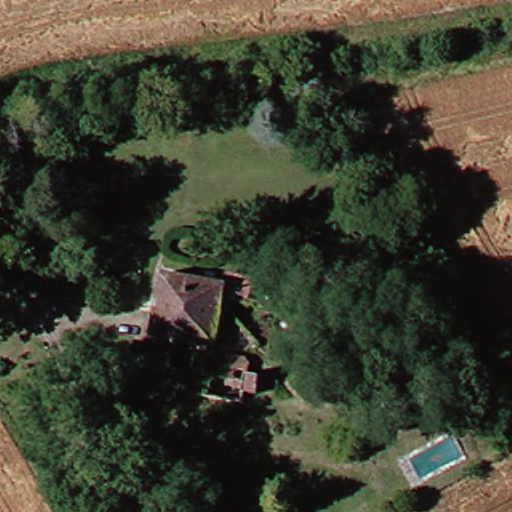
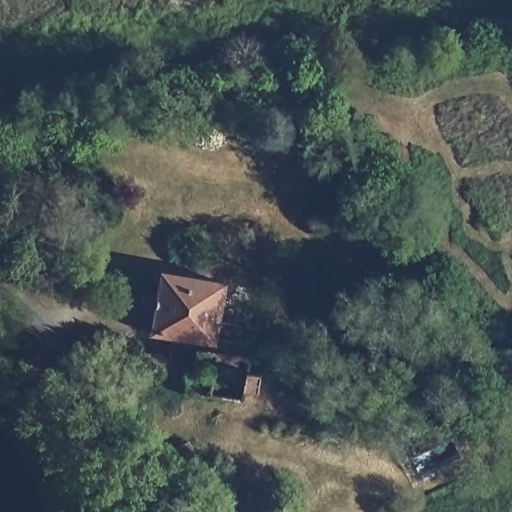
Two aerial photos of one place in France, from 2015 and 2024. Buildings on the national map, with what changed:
unchanged [(217,322),(214,347),(149,341),(154,275),(223,281),(224,256),(249,258),(246,300),(236,298),(233,322),(237,324),(217,322)]

